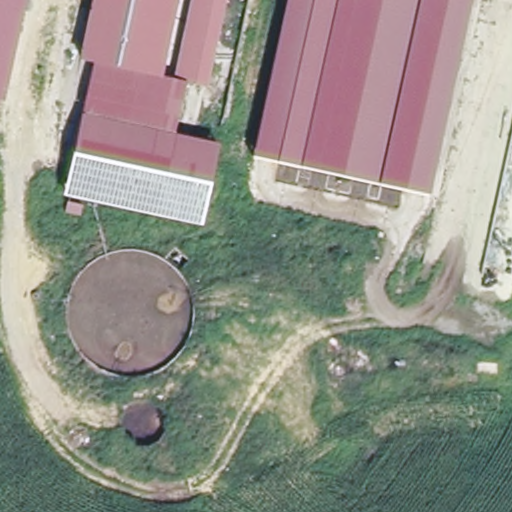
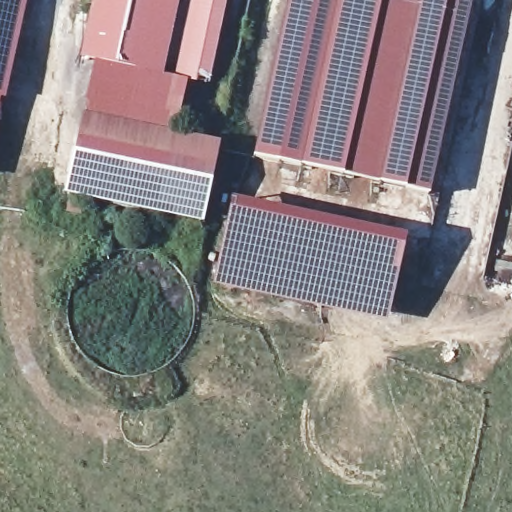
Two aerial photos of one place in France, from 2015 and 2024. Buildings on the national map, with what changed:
unchanged [(0,0),(16,0),(0,69),(0,0)]
new [(27,0),(6,100),(0,100),(0,69),(16,0),(27,0)]
unchanged [(84,58),(97,0),(168,0),(151,74),(84,58)]
unchanged [(183,82),(173,79),(190,0),(226,0),(208,86),(183,82)]
unchanged [(250,154),(288,0),(472,0),(424,197),(250,154)]
unchanged [(96,61),(151,74),(183,82),(175,134),(85,114),(96,61)]
unchanged [(85,114),(175,134),(192,138),(213,143),(194,224),(173,219),(66,194),(85,114)]
new [(230,198),(369,229),(405,240),(387,322),(285,302),(212,285),(230,198)]

